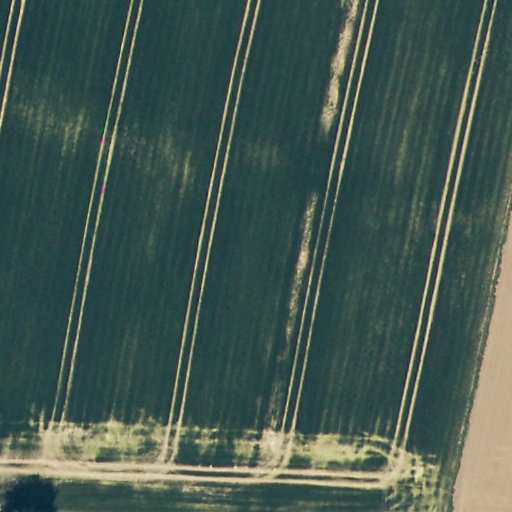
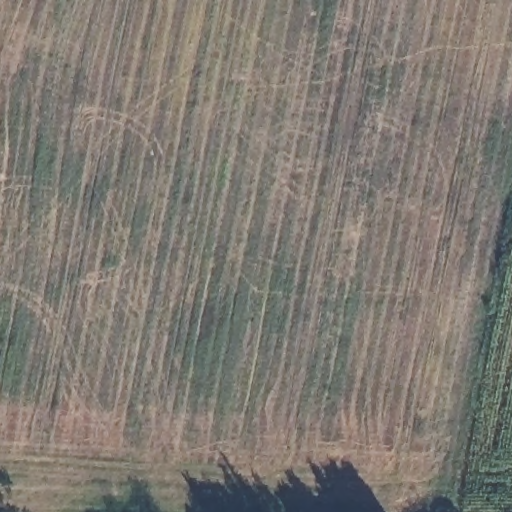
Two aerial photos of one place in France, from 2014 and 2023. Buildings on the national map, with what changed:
[]

